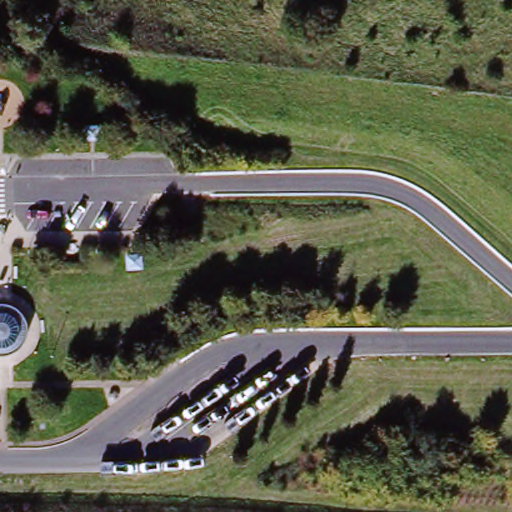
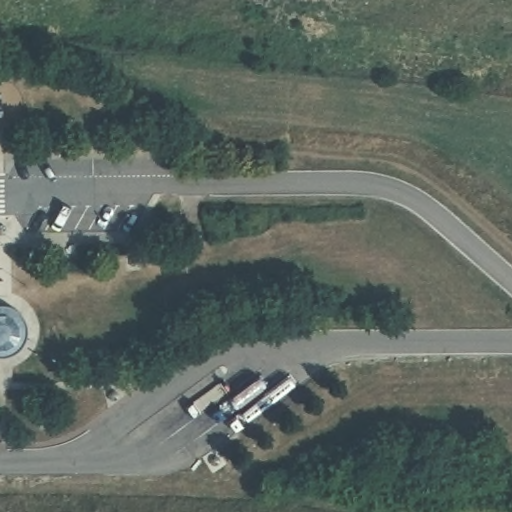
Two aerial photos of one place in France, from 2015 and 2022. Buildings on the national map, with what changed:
unchanged [(25,346),(20,351),(10,355),(2,355),(0,354),(0,310),(2,308),(11,308),(20,313),(25,318),(30,328),(30,336),(25,346)]

